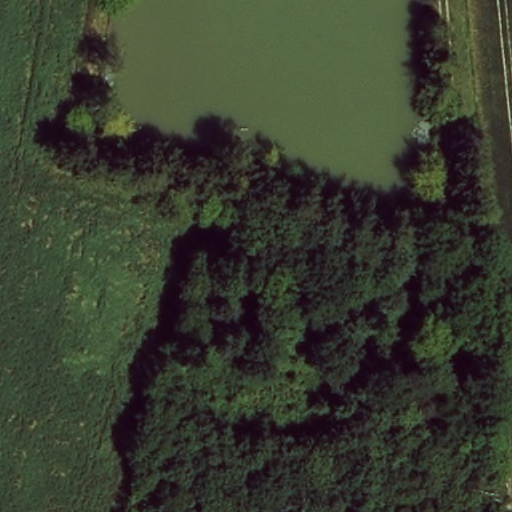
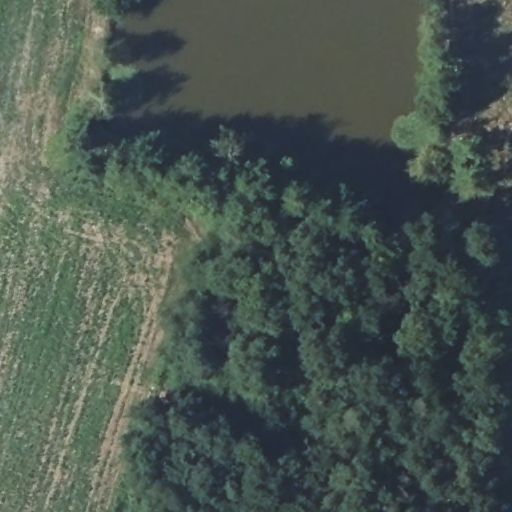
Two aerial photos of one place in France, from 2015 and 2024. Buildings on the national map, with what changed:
unchanged [(402,266),(406,237),(425,238),(421,267),(402,266)]

